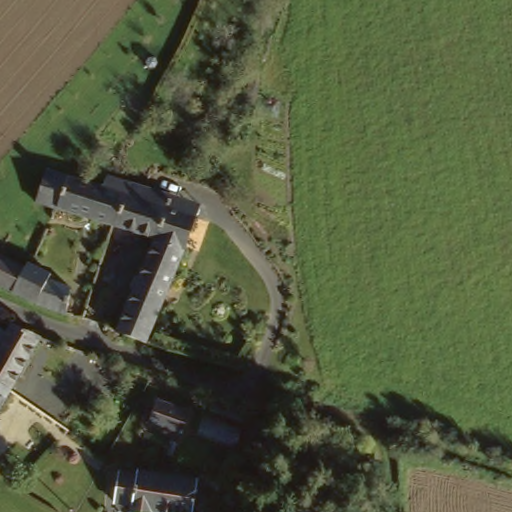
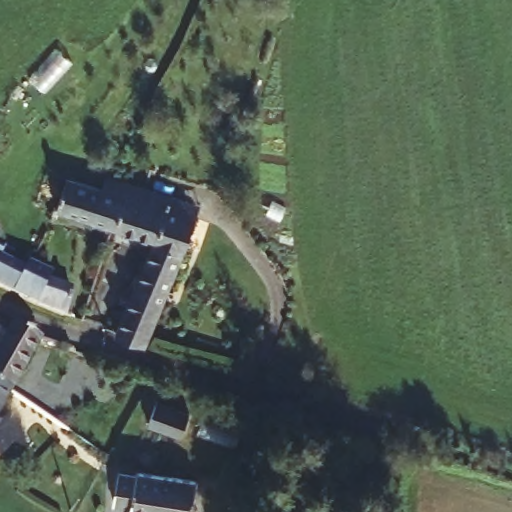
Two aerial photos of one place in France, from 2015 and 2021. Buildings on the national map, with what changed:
unchanged [(54,174),(107,196),(118,177),(137,184),(116,232),(42,200),(54,174)]
unchanged [(107,339),(143,244),(116,232),(137,184),(151,189),(194,210),(167,276),(138,351),(107,339)]
unchanged [(0,290),(0,256),(19,265),(24,251),(49,261),(46,273),(74,286),(64,314),(0,290)]
unchanged [(4,321),(29,330),(43,336),(12,390),(0,385),(0,328),(4,321)]
unchanged [(12,390),(0,409),(0,385),(12,390)]
unchanged [(153,401),(185,413),(178,439),(142,427),(153,401)]
unchanged [(109,502),(112,477),(189,482),(188,512),(127,512),(127,503),(109,502)]

